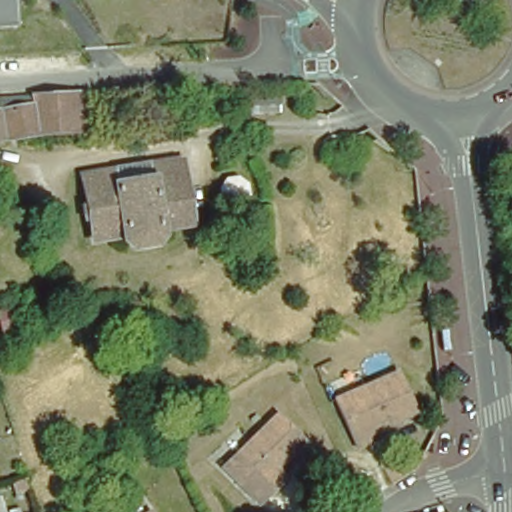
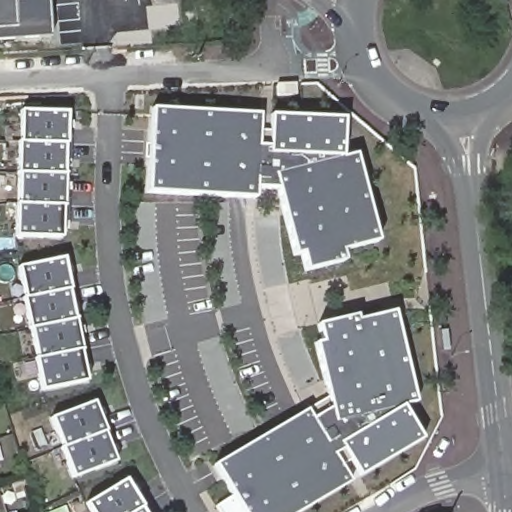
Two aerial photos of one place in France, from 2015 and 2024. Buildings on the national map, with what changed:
unchanged [(17,28),(0,29),(0,0),(16,0),(17,28)]
new [(50,35),(0,39),(0,29),(17,28),(16,0),(48,0),(50,35)]
demolished [(245,111),(244,96),(278,94),(280,109),(245,111)]
demolished [(83,95),(85,134),(40,136),(0,143),(0,99),(83,95)]
new [(66,113),(62,237),(16,238),(21,111),(66,113)]
new [(257,117),(257,135),(267,135),(267,118),(342,121),(341,157),(353,158),(377,243),(341,253),(345,266),(306,273),(302,256),(292,258),(276,189),(254,190),(254,200),(147,194),(150,111),(257,117)]
demolished [(91,205),(86,177),(179,159),(192,225),(162,231),(162,236),(157,246),(139,250),(129,242),(128,237),(97,244),(92,215),(91,205)]
demolished [(230,201),(219,195),(217,187),(224,177),(234,175),(244,181),(245,190),(240,199),(230,201)]
new [(64,262),(88,382),(45,392),(19,269),(64,262)]
demolished [(80,310),(82,322),(56,327),(54,316),(80,310)]
new [(235,495),(216,465),(330,399),(316,342),(322,340),(318,324),(357,316),(360,320),(397,312),(417,402),(403,405),(423,438),(361,473),(351,458),(337,465),(347,482),(298,512),(218,512),(214,505),(235,495)]
demolished [(5,334),(0,335),(0,319),(5,334)]
demolished [(364,433),(367,442),(356,447),(337,402),(397,377),(412,413),(395,421),(389,417),(381,421),(378,427),(364,433)]
new [(92,402),(114,462),(72,479),(51,420),(92,402)]
demolished [(282,479),(258,502),(226,470),(276,420),(301,444),(284,461),(281,457),(270,467),(273,471),(282,479)]
demolished [(391,487),(381,467),(406,455),(415,470),(391,487)]
new [(143,512),(92,512),(87,505),(125,482),(143,512)]

